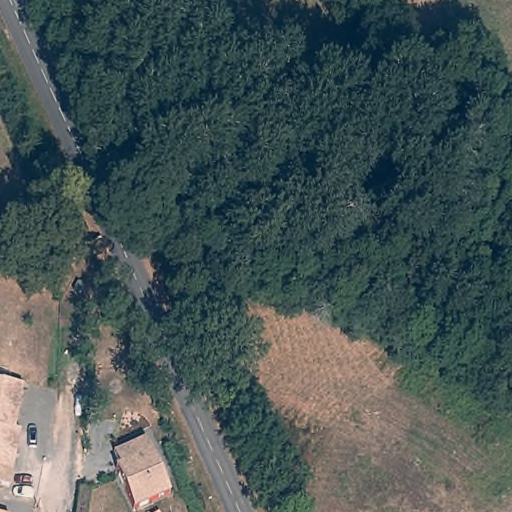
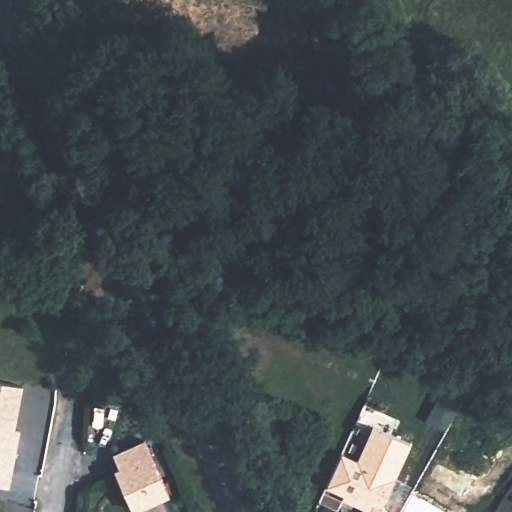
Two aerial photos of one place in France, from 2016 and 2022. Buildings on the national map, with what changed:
unchanged [(9,487),(0,485),(0,381),(23,386),(15,429),(20,430),(19,439),(9,487)]
new [(345,449),(361,457),(377,423),(414,440),(385,503),(403,512),(367,512),(370,506),(356,498),(358,494),(332,479),(345,449)]
unchanged [(146,441),(147,442),(171,495),(135,512),(118,473),(122,471),(116,458),(116,455),(146,441)]

